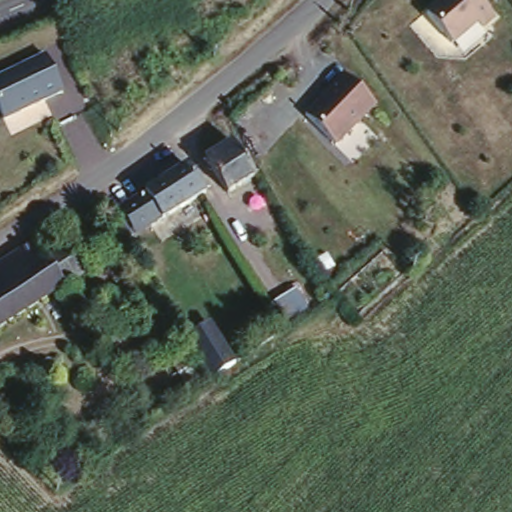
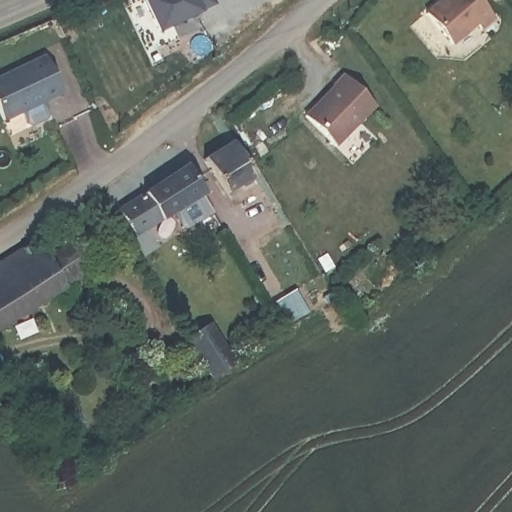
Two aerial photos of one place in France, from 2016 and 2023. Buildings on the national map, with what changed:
new [(200,8),(202,12),(159,34),(146,0),(214,0),(215,3),(200,8)]
unchanged [(478,0),(493,20),(479,30),(475,25),(449,45),(425,14),(443,0),(478,0)]
unchanged [(0,115),(0,79),(45,58),(62,94),(2,120),(0,115)]
unchanged [(341,78),(372,108),(333,148),(302,118),(341,78)]
unchanged [(208,156),(232,139),(256,175),(230,193),(208,156)]
unchanged [(119,213),(183,168),(201,193),(136,237),(119,213)]
unchanged [(46,265),(71,248),(83,267),(0,327),(0,263),(30,245),(46,265)]
unchanged [(293,294),(305,316),(286,327),(276,305),(293,294)]
unchanged [(184,338),(208,324),(236,364),(210,381),(184,338)]
unchanged [(145,379),(184,356),(198,384),(162,406),(145,379)]
unchanged [(9,409),(0,415),(0,395),(9,409)]

